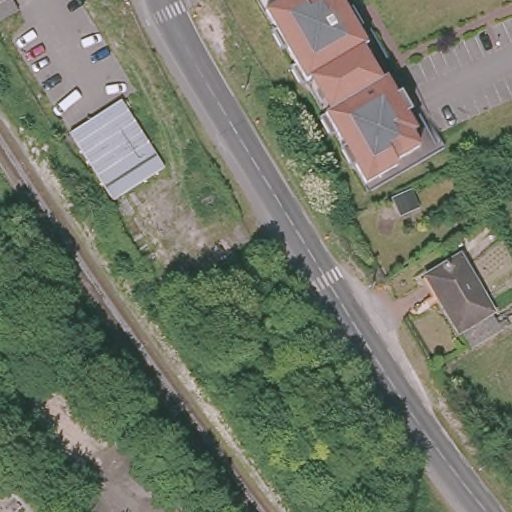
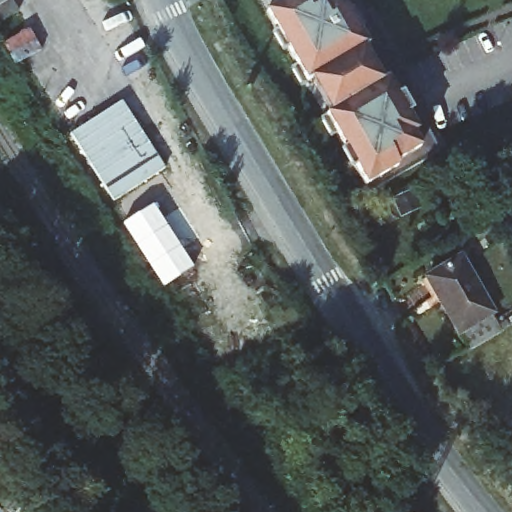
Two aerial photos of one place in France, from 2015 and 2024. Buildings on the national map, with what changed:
unchanged [(12,0),(18,11),(0,22),(0,0),(12,0)]
unchanged [(364,187),(318,105),(264,13),(283,3),(287,0),(338,0),(366,48),(362,50),(376,76),(381,84),(385,81),(406,116),(415,133),(411,135),(419,149),(393,164),(396,169),(382,176),(364,187)]
unchanged [(121,102),(164,168),(113,200),(71,134),(121,102)]
new [(121,225),(153,205),(193,269),(162,289),(121,225)]
unchanged [(461,254),(494,313),(462,332),(428,274),(461,254)]

